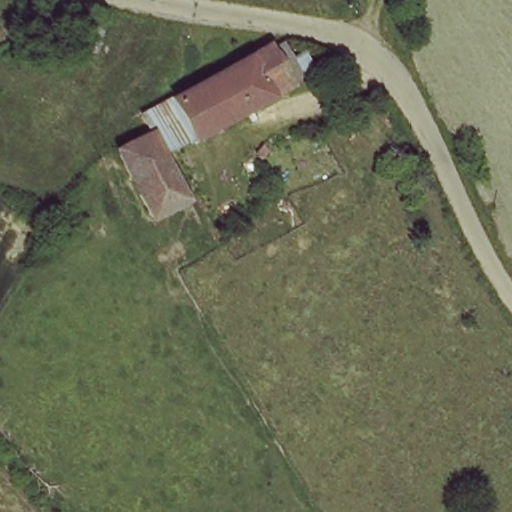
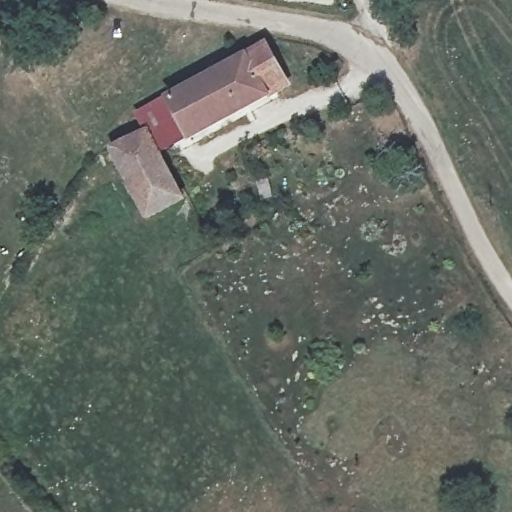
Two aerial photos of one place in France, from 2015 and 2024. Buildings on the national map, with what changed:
unchanged [(149,144),(137,125),(250,46),(276,85),(162,163),(149,144)]
unchanged [(162,163),(189,204),(157,226),(117,166),(149,144),(162,163)]

